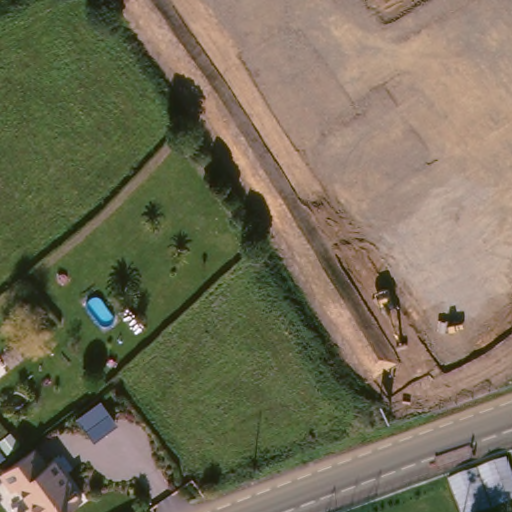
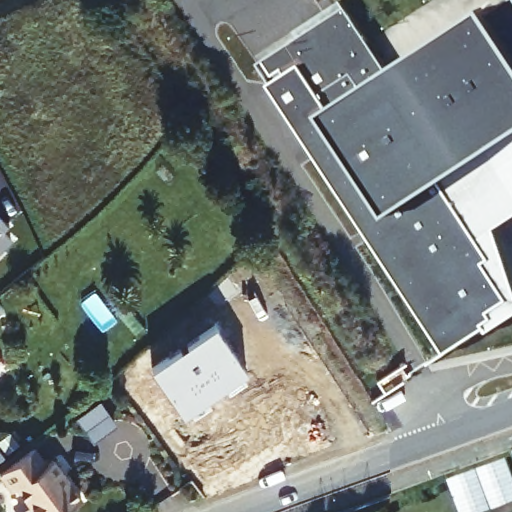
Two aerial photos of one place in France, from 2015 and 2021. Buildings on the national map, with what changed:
new [(285,69),(275,75),(266,60),(348,9),(391,69),(487,8),(491,13),(511,0),(512,0),(512,217),(496,228),(512,280),(512,315),(488,331),(486,327),(447,352),(271,84),(287,73),(285,69)]
new [(0,220),(6,226),(1,231),(10,240),(0,250),(0,220)]
new [(215,329),(246,376),(182,418),(152,372),(215,329)]
new [(99,405),(117,429),(92,447),(89,443),(74,423),(99,405)]
unchanged [(9,468),(44,443),(56,459),(62,454),(91,494),(76,505),(75,512),(32,512),(40,507),(41,499),(27,481),(25,483),(19,482),(9,468)]
unchanged [(482,512),(472,512),(461,474),(512,454),(512,501),(482,512)]
new [(0,470),(0,455),(8,465),(0,470)]

